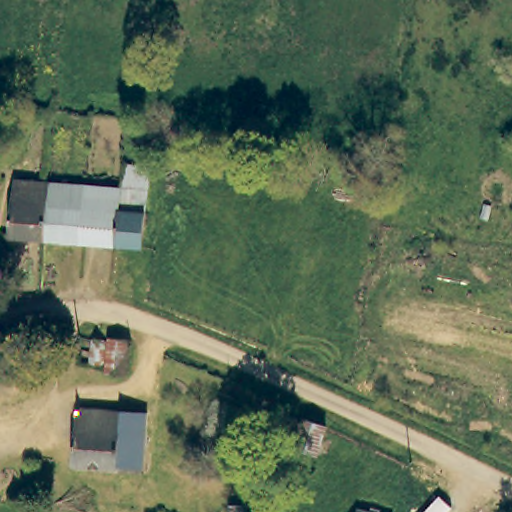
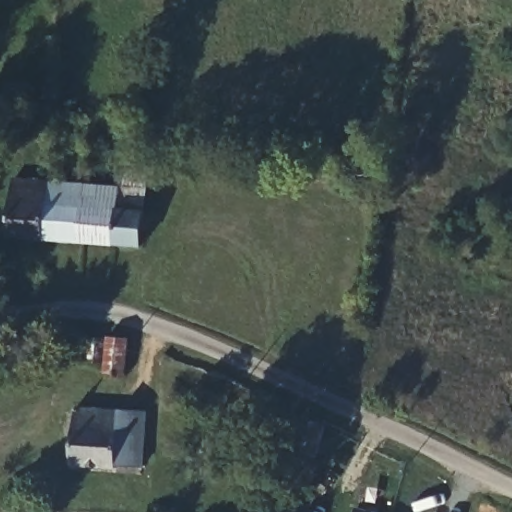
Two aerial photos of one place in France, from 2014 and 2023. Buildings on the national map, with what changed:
unchanged [(143,249),(117,247),(81,244),(81,243),(85,187),(119,190),(122,190),(124,164),(149,166),(145,216),(145,219),(143,249)]
unchanged [(11,239),(15,182),(51,184),(46,242),(11,239)]
unchanged [(81,243),(81,244),(46,242),(51,184),(85,187),(81,243)]
unchanged [(125,336),(121,373),(101,371),(105,334),(125,336)]
unchanged [(143,465),(119,463),(119,466),(74,463),(78,406),(146,411),(143,465)]
unchanged [(288,423),(289,415),(297,416),(295,425),(288,423)]
unchanged [(329,422),(318,453),(295,445),(305,415),(329,422)]
unchanged [(363,506),(384,512),(361,512),(363,506)]

